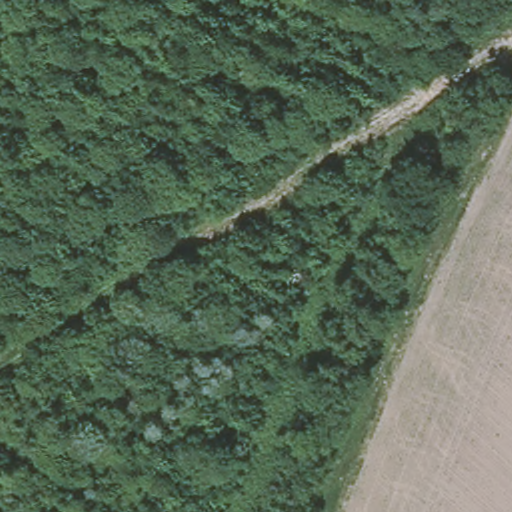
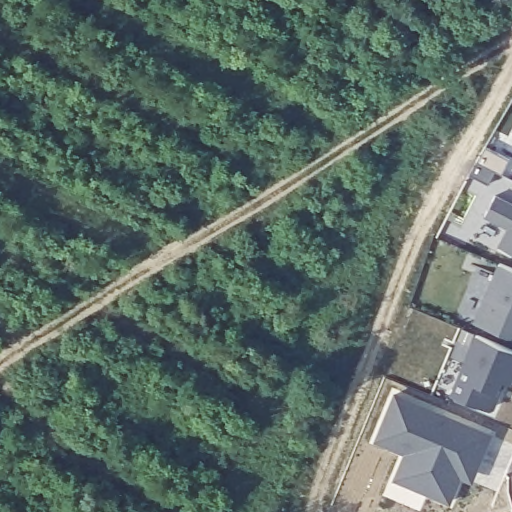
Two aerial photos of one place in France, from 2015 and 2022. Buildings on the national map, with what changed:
new [(498,246),(507,228),(484,216),(495,195),(512,204),(512,253),(498,246)]
new [(499,263),(512,268),(512,338),(475,323),(499,263)]
new [(492,407),(487,409),(451,394),(476,334),(512,349),(512,375),(508,383),(503,380),(497,396),(492,407)]
new [(460,476),(449,501),(395,479),(405,453),(375,440),(394,394),(490,434),(477,466),(470,480),(460,476)]

